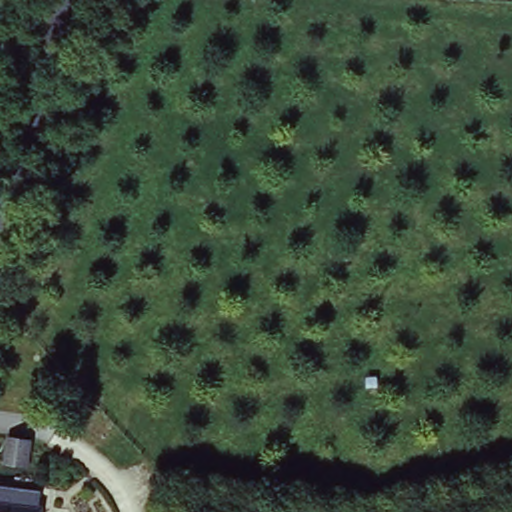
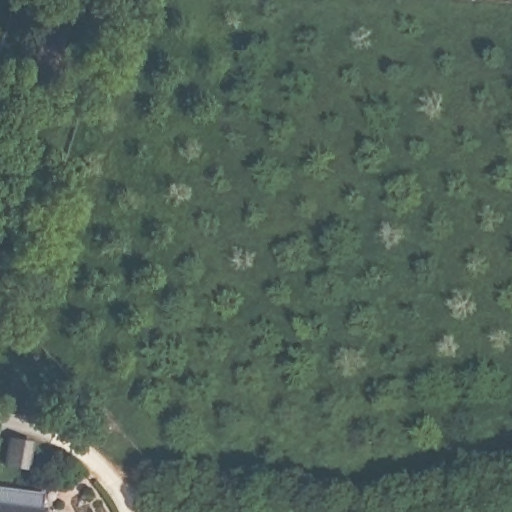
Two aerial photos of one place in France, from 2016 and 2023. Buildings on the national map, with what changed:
unchanged [(18,463),(7,463),(9,429),(21,430),(18,463)]
unchanged [(19,501),(22,486),(44,490),(41,512),(0,512),(0,499),(19,501)]

